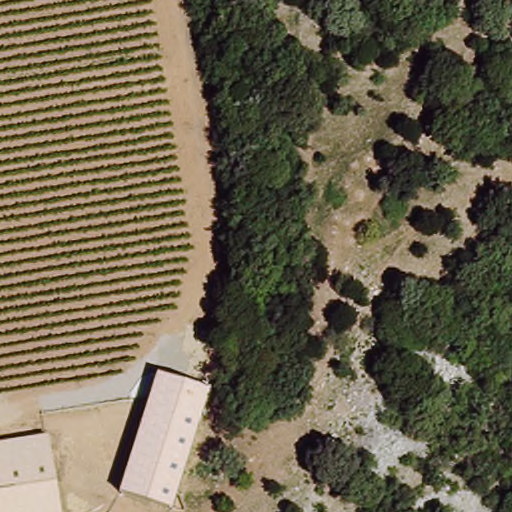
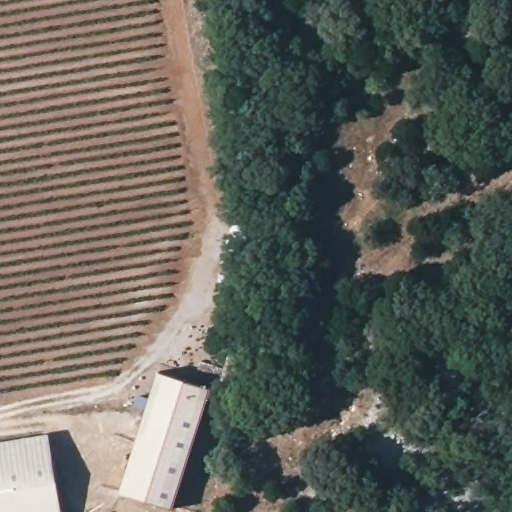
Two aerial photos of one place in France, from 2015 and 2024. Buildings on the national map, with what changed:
unchanged [(211,387),(173,509),(119,491),(157,371),(211,387)]
unchanged [(0,512),(0,440),(47,433),(60,512),(0,512)]

